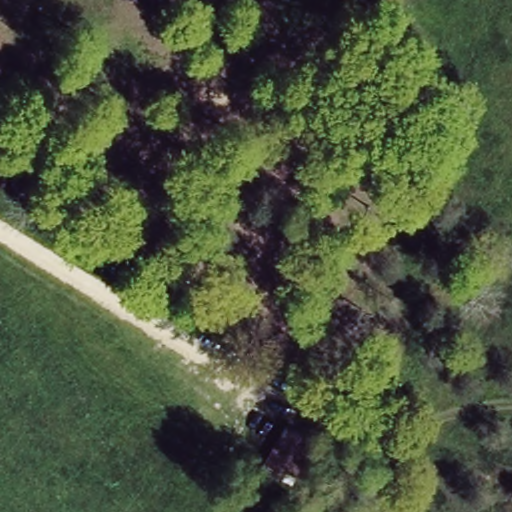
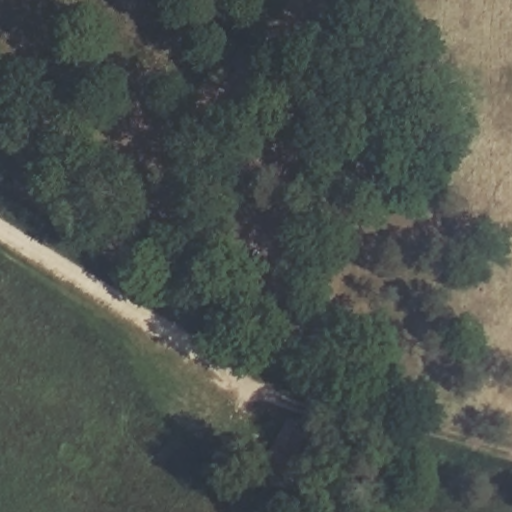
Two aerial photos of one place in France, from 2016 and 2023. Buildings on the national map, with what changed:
unchanged [(326,440),(300,483),(262,463),(289,420),(326,440)]

